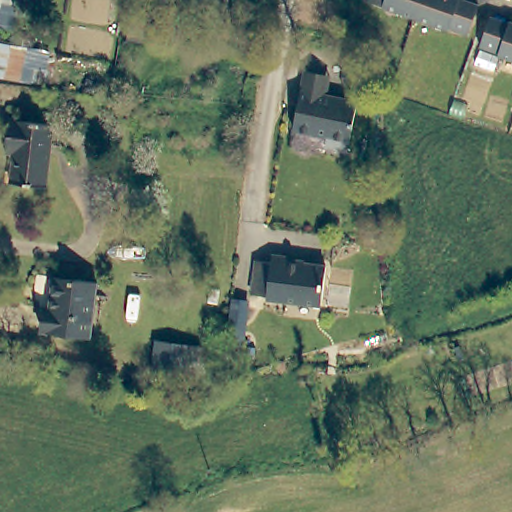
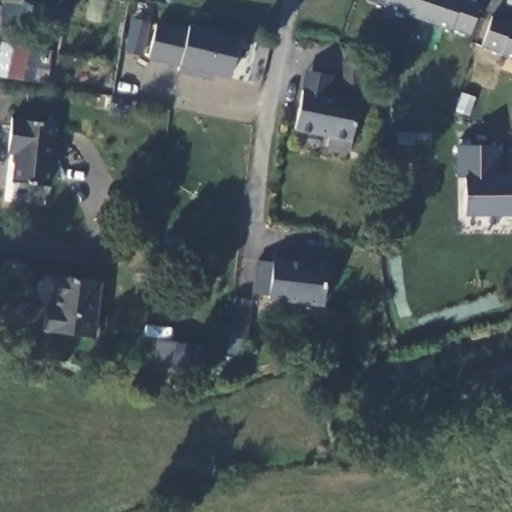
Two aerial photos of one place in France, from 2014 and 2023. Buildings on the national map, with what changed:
unchanged [(471,40),(452,34),(452,35),(386,12),(386,11),(372,6),(374,0),(463,0),(464,1),(463,2),(482,10),(479,18),(471,40)]
unchanged [(500,56),(501,53),(485,47),(495,19),(496,17),(512,22),(512,60),(500,56)]
new [(184,29),(184,25),(241,39),(231,79),(214,75),(211,81),(176,73),(178,69),(177,64),(146,58),(155,23),(184,29)]
unchanged [(7,75),(14,46),(47,53),(41,83),(7,75)]
unchanged [(350,156),(327,151),(330,141),(296,135),(303,95),(307,75),(332,79),(328,99),(360,106),(350,156)]
unchanged [(12,178),(19,149),(7,146),(14,116),(57,126),(49,184),(12,178)]
new [(462,216),(464,179),(455,179),(455,146),(498,146),(498,174),(512,174),(512,216),(462,216)]
unchanged [(332,306),(277,301),(277,298),(262,297),(266,263),(281,265),(281,258),(297,260),(297,264),(336,268),(332,306)]
unchanged [(101,281),(99,337),(44,335),(45,312),(51,312),(52,279),(101,281)]
unchanged [(252,338),(237,336),(242,302),(257,304),(252,338)]
unchanged [(172,325),(207,325),(208,355),(172,355),(164,355),(164,326),(172,325)]

